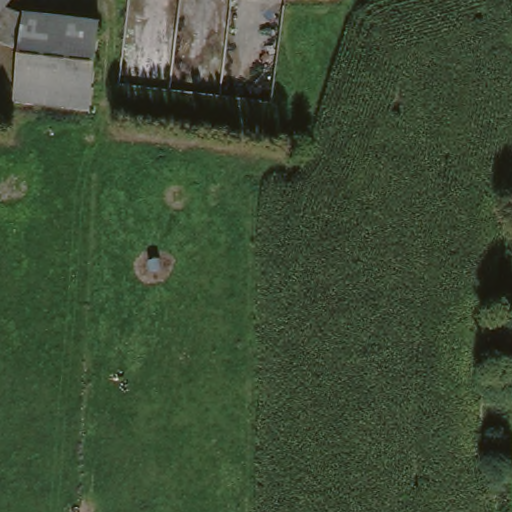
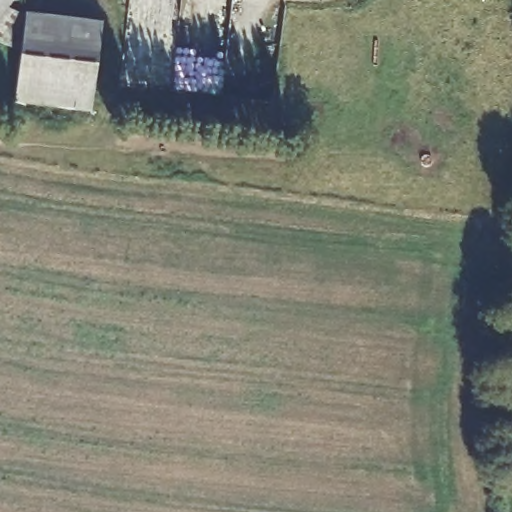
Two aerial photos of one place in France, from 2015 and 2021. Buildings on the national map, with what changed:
unchanged [(0,22),(0,0),(17,0),(0,22)]
unchanged [(15,108),(21,55),(25,23),(101,32),(91,117),(15,108)]

